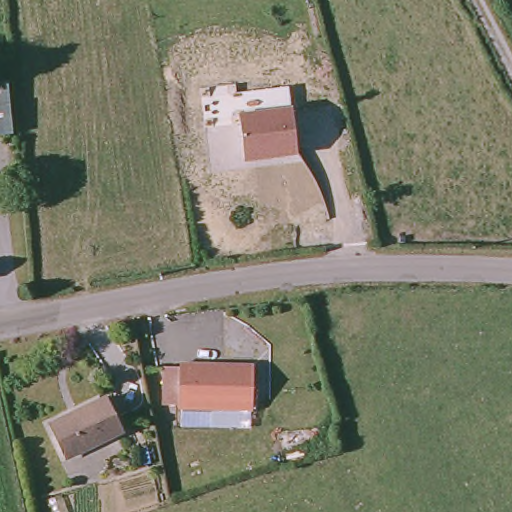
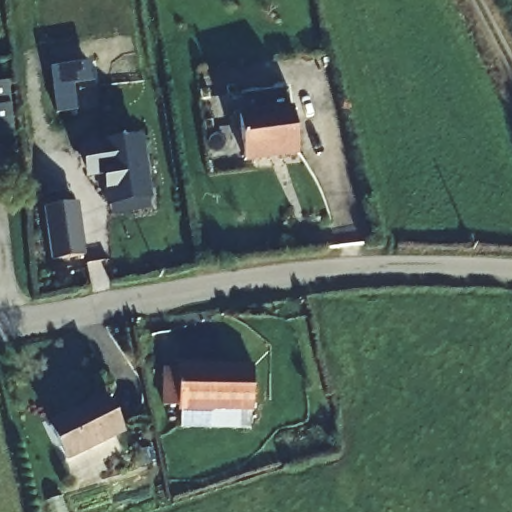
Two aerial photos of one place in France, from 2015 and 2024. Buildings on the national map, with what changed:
new [(52,67),(88,62),(90,78),(71,80),(75,110),(58,113),(52,67)]
unchanged [(9,80),(16,141),(0,142),(0,81),(9,80)]
unchanged [(293,105),(298,154),(246,160),(239,112),(293,105)]
new [(151,140),(160,204),(117,210),(111,176),(93,179),(89,150),(151,140)]
new [(83,198),(92,254),(57,259),(48,204),(83,198)]
new [(159,204),(160,213),(121,219),(120,210),(159,204)]
unchanged [(168,371),(243,371),(243,417),(168,416),(168,371)]
unchanged [(106,399),(122,435),(66,460),(50,424),(106,399)]

